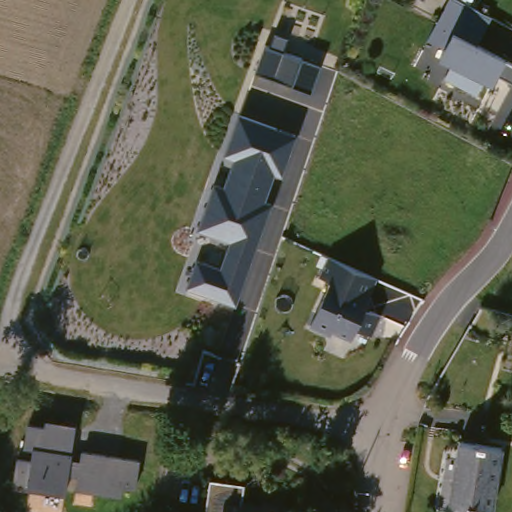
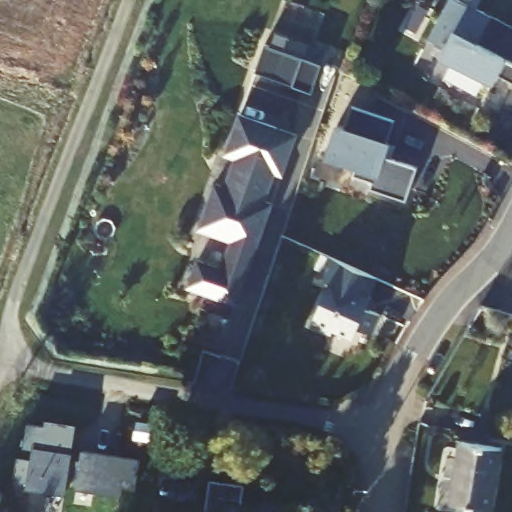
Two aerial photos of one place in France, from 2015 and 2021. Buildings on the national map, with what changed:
unchanged [(480,84),(474,96),(473,96),(442,79),(448,67),(436,61),(442,50),(425,41),(447,0),(452,0),(488,19),(474,47),(489,55),(512,67),(512,88),(494,78),(488,88),(483,85),(480,84)]
unchanged [(255,73),(265,45),(304,60),(293,86),(255,73)]
new [(384,157),(416,169),(405,201),(371,188),(373,183),(354,175),(357,167),(324,156),(335,125),(345,128),(352,108),(393,122),(385,142),(388,143),(384,157)]
unchanged [(271,174),(264,201),(270,203),(238,306),(186,289),(196,260),(220,267),(228,241),(198,230),(212,184),(220,187),(230,157),(225,155),(238,114),(295,134),(280,177),(271,174)]
unchanged [(367,301),(369,302),(365,312),(379,319),(370,338),(355,331),(350,342),(331,333),(330,338),(310,328),(330,285),(319,280),(328,260),(375,282),(367,301)]
unchanged [(134,489),(121,487),(120,495),(65,487),(64,493),(11,483),(16,457),(30,460),(32,448),(21,446),(26,420),(45,425),(46,420),(76,426),(70,456),(80,458),(82,450),(139,461),(134,489)]
unchanged [(512,443),(512,450),(503,506),(459,499),(470,436),(512,443)]
unchanged [(220,475),(255,480),(252,499),(272,502),(273,497),(297,501),(296,512),(215,512),(220,476),(220,475)]

